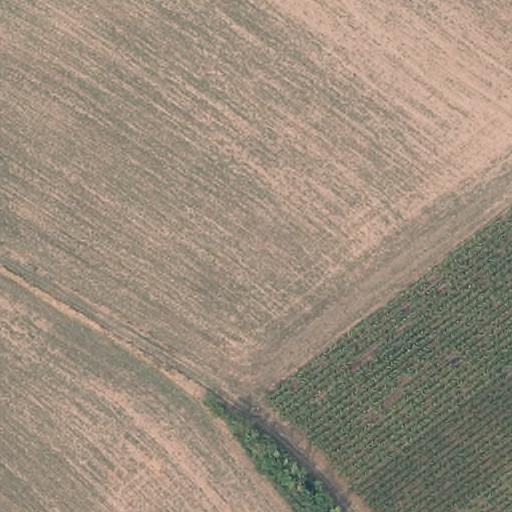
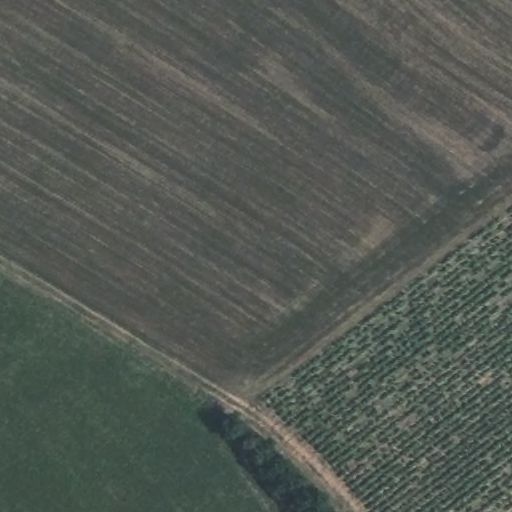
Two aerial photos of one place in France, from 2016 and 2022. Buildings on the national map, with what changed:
[]

